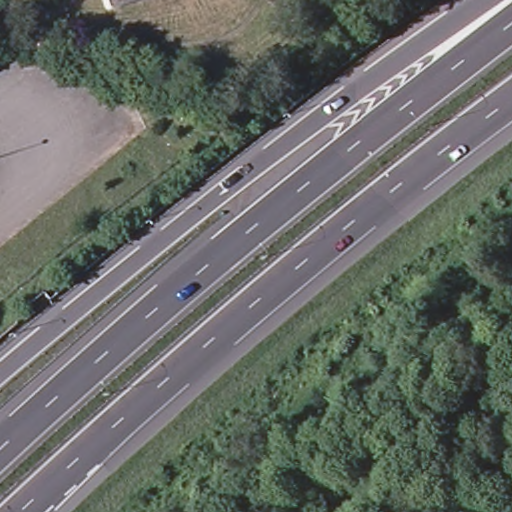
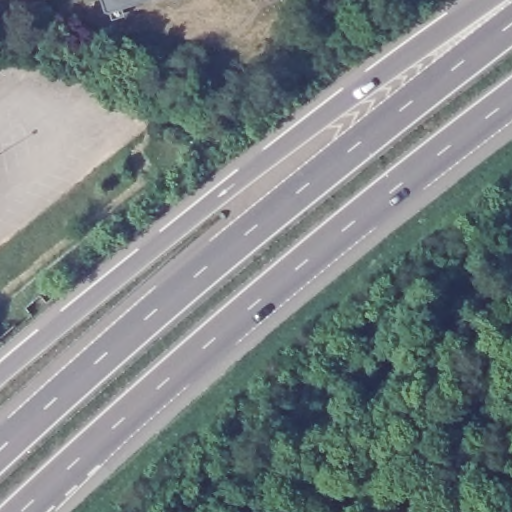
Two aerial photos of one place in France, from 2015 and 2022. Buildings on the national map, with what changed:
unchanged [(102,0),(123,0),(104,6),(102,0)]

